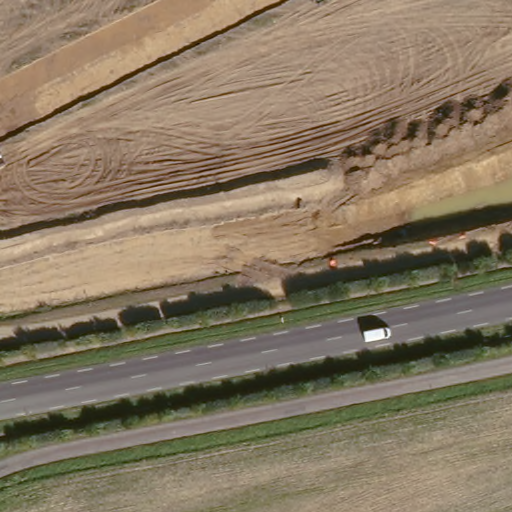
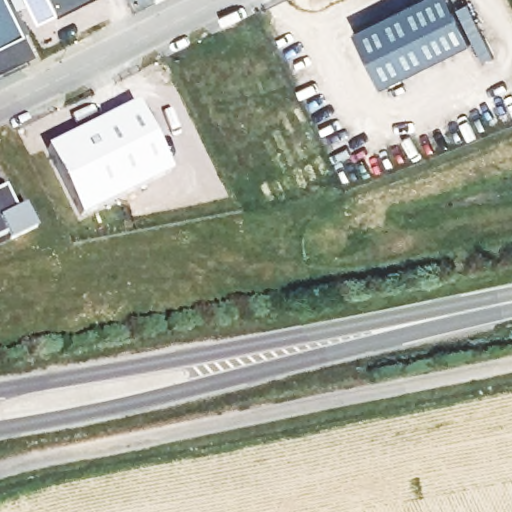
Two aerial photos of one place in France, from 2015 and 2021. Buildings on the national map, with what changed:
new [(0,46),(0,0),(14,0),(29,31),(0,46)]
new [(469,4),(495,57),(484,63),(473,44),(383,89),(355,30),(418,0),(452,0),(456,8),(469,4)]
new [(170,173),(81,218),(48,148),(136,104),(170,173)]
new [(25,206),(36,232),(13,243),(7,234),(0,238),(0,189),(5,187),(16,209),(25,206)]

